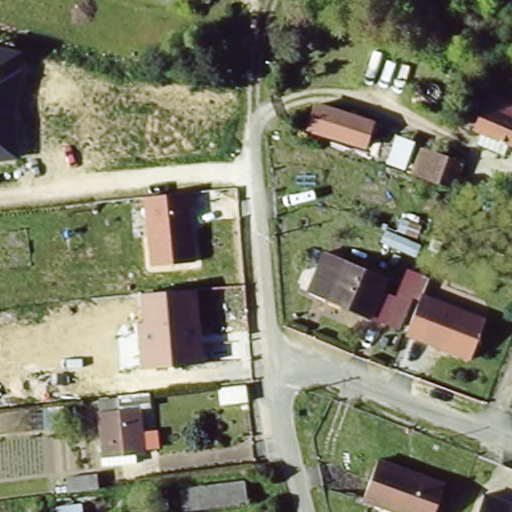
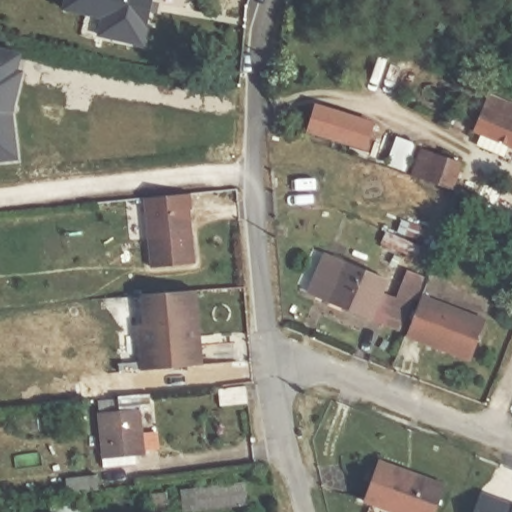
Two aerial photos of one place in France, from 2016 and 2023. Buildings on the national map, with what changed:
new [(150,12),(143,45),(100,35),(104,17),(64,9),(66,0),(153,0),(152,2),(150,12)]
unchanged [(10,109),(19,156),(0,158),(0,43),(27,48),(10,109)]
unchanged [(492,148),(496,137),(476,129),(490,94),(512,103),(512,143),(509,142),(504,153),(492,148)]
unchanged [(370,121),(362,148),(305,131),(313,104),(370,121)]
unchanged [(412,178),(422,149),(461,161),(451,191),(412,178)]
unchanged [(195,260),(150,264),(143,195),(188,191),(195,260)]
unchanged [(425,247),(420,262),(383,244),(388,233),(425,247)]
unchanged [(395,299),(399,293),(412,299),(397,330),(309,292),(325,250),(342,256),(384,276),(382,281),(377,290),(395,299)]
unchanged [(412,299),(399,293),(406,272),(427,279),(422,297),(485,322),(472,361),(407,334),(397,330),(412,299)]
unchanged [(195,290),(202,367),(142,371),(137,325),(144,324),(141,294),(195,290)]
unchanged [(224,407),(222,390),(222,389),(247,386),(250,404),(224,407)]
unchanged [(105,467),(103,458),(96,412),(137,406),(144,451),(135,453),(137,462),(105,467)]
unchanged [(444,486),(433,512),(398,512),(364,498),(379,460),(444,486)]
unchanged [(63,485),(61,471),(90,467),(92,481),(63,485)]
unchanged [(255,482),(258,501),(182,510),(180,491),(255,482)]
unchanged [(512,505),(512,512),(482,512),(489,496),(512,505)]
unchanged [(94,498),(95,512),(62,512),(61,501),(94,498)]

